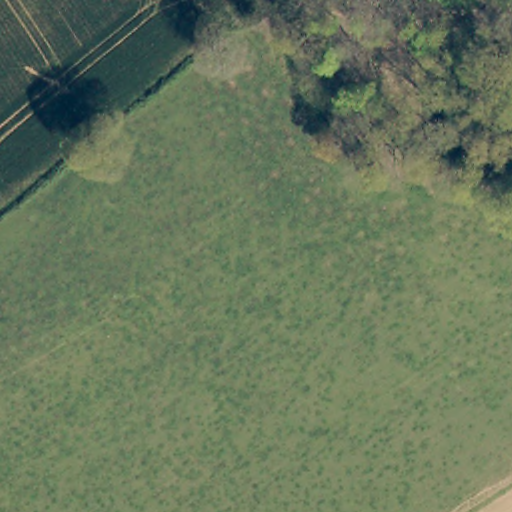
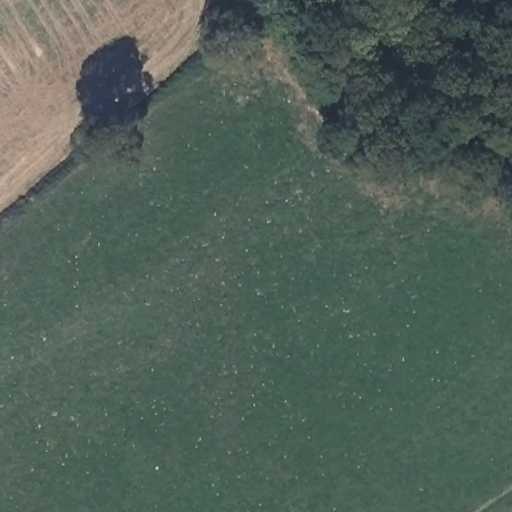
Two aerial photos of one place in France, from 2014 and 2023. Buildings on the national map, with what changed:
[]

